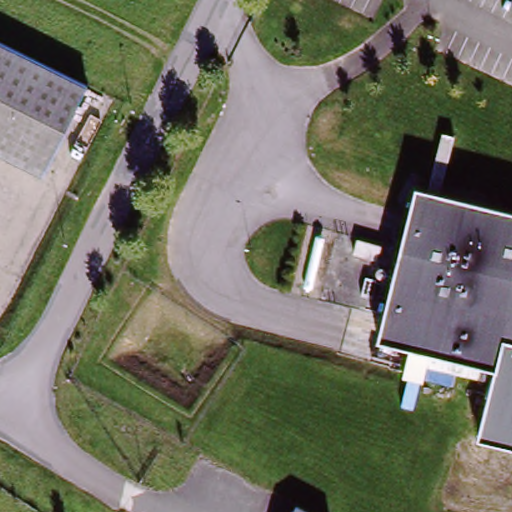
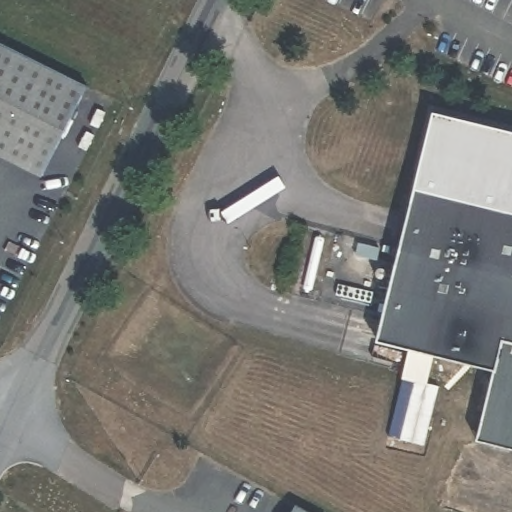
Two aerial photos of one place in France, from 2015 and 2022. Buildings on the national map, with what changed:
unchanged [(90,84),(46,174),(0,151),(0,40),(90,84)]
new [(512,211),(414,189),(432,112),(512,130),(512,211)]
unchanged [(493,370),(378,342),(414,189),(512,211),(512,341),(501,338),(493,370)]
unchanged [(493,370),(501,338),(512,341),(512,444),(479,436),(493,370)]
unchanged [(293,512),(299,502),(316,512),(293,512)]

